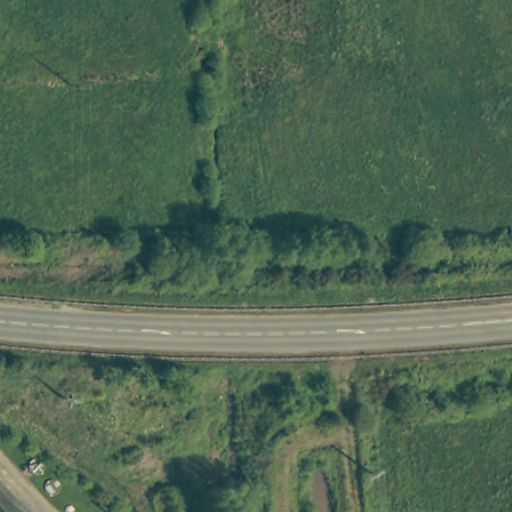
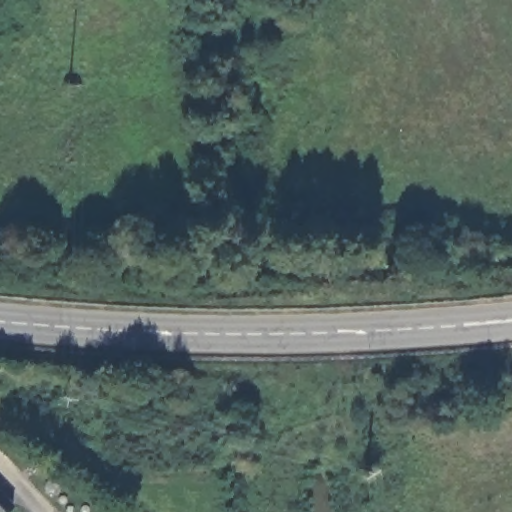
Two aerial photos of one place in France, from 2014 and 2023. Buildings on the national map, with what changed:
unchanged [(3,512),(0,512),(0,487),(14,501),(3,512)]

